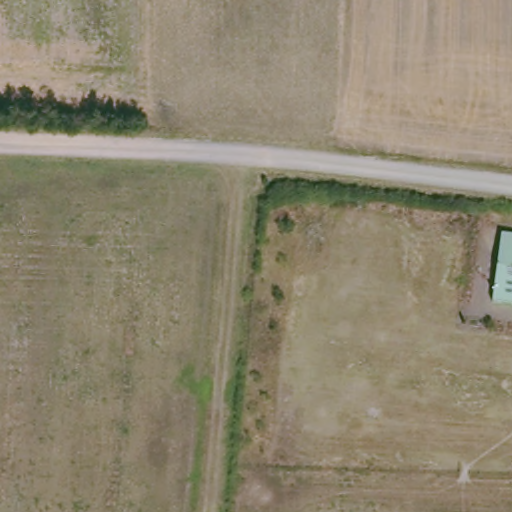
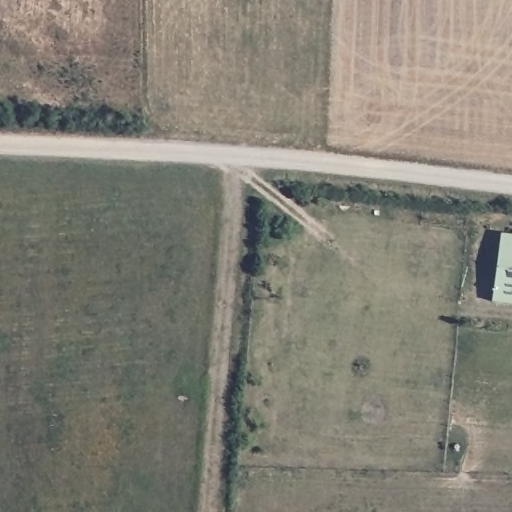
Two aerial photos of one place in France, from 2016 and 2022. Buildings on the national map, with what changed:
unchanged [(512,234),(512,302),(493,299),(503,233),(512,234)]

